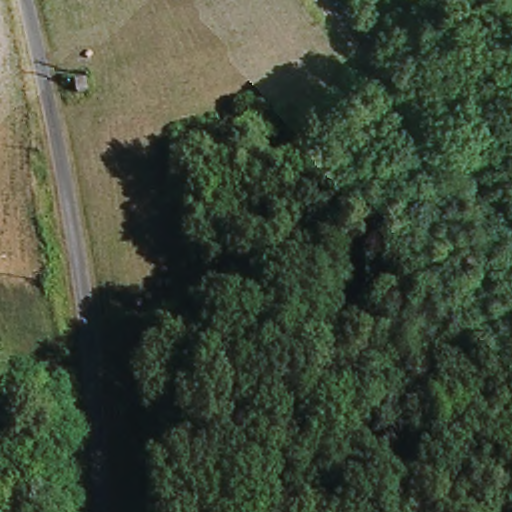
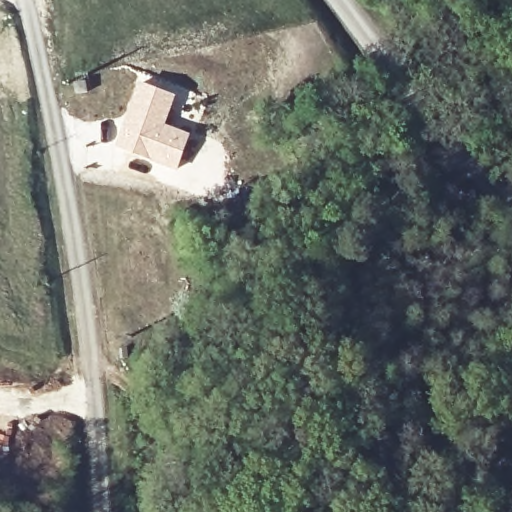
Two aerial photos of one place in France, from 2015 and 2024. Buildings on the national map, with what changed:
new [(139,81),(178,95),(167,124),(192,134),(177,171),(115,146),(139,81)]
unchanged [(81,96),(80,87),(89,85),(90,94),(81,96)]

